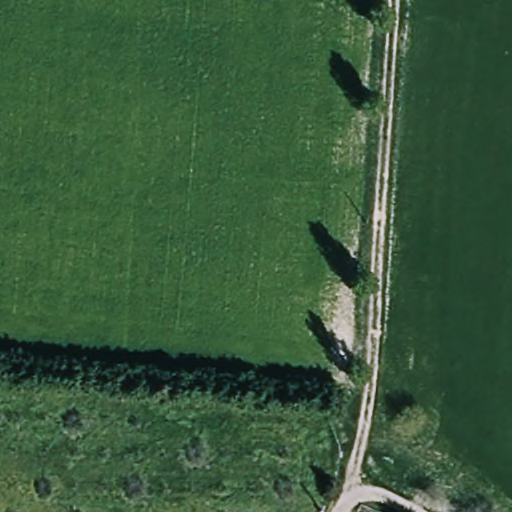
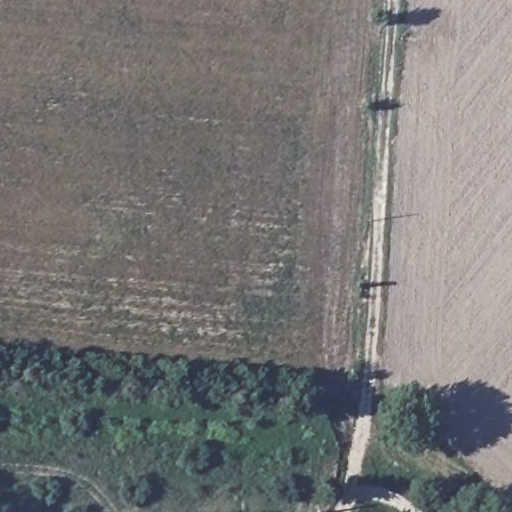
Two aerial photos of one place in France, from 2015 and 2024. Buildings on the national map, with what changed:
[]

